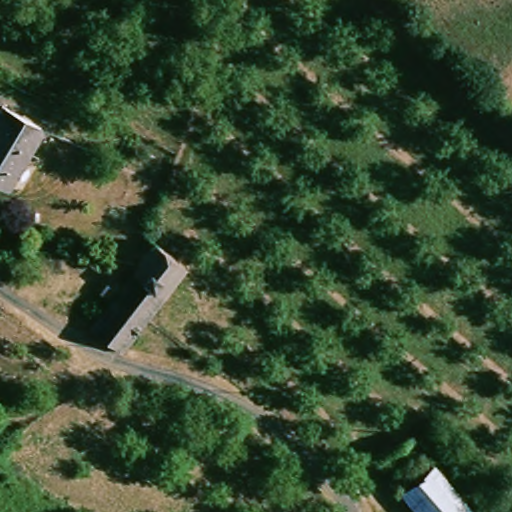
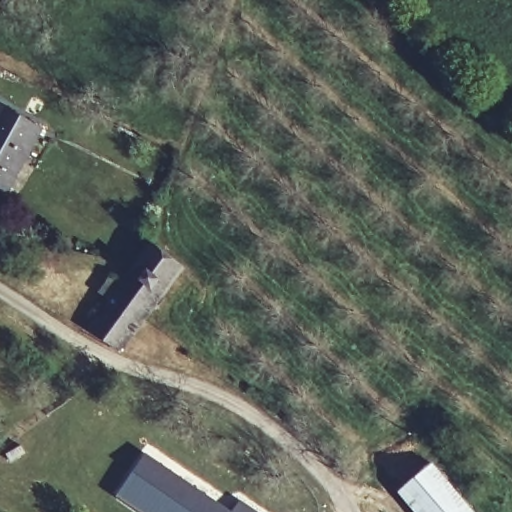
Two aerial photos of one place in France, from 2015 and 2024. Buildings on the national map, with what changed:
unchanged [(0,187),(0,116),(2,112),(37,133),(2,188),(0,187)]
unchanged [(87,331),(137,263),(152,247),(182,269),(123,354),(87,331)]
new [(147,454),(233,512),(139,512),(117,497),(147,454)]
unchanged [(432,466),(470,512),(410,512),(395,495),(432,466)]
new [(258,512),(234,512),(242,500),(258,512)]

